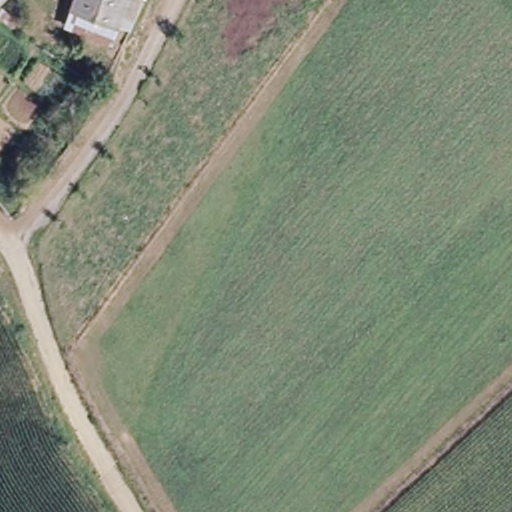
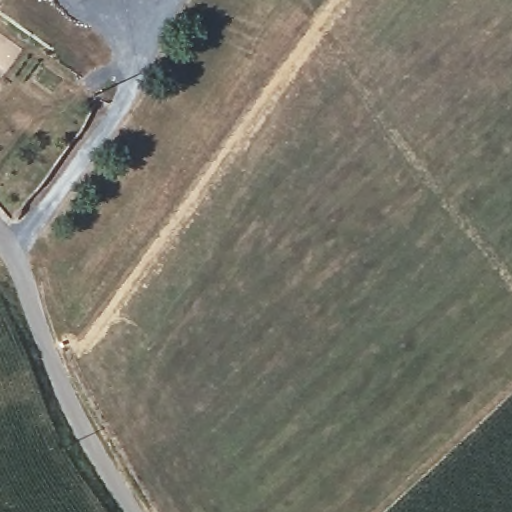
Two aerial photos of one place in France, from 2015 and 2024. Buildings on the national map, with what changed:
demolished [(115,19),(107,39),(59,28),(66,0),(137,0),(131,24),(115,19)]
new [(77,0),(81,0),(79,2),(77,0)]

